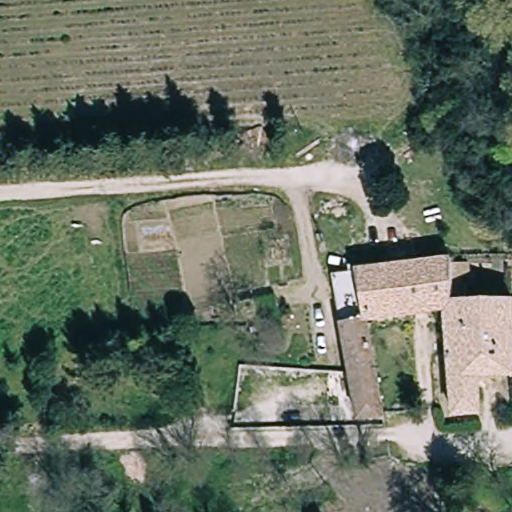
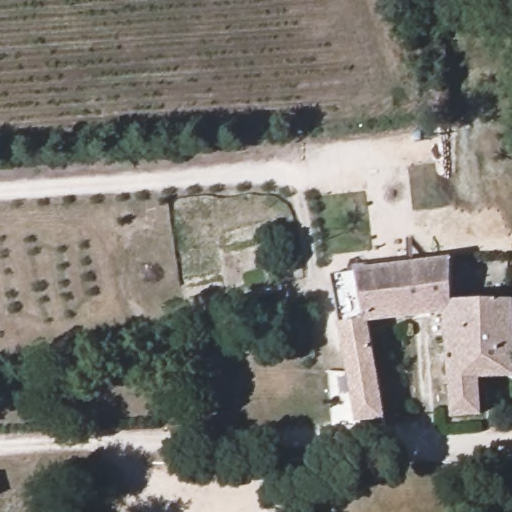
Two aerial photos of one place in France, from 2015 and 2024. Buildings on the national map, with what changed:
unchanged [(369,328),(382,427),(357,430),(333,283),(443,268),(442,263),(453,262),(455,272),(450,273),(455,313),(445,317),(369,328)]
unchanged [(510,302),(512,312),(512,316),(508,316),(512,345),(512,384),(510,384),(508,377),(477,382),(482,418),(457,421),(445,317),(455,313),(498,307),(498,303),(510,302)]

